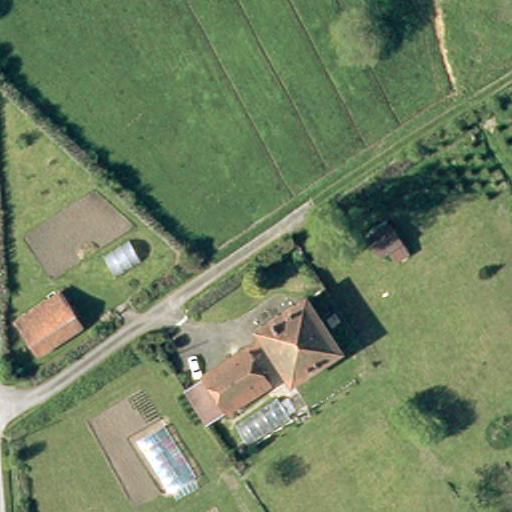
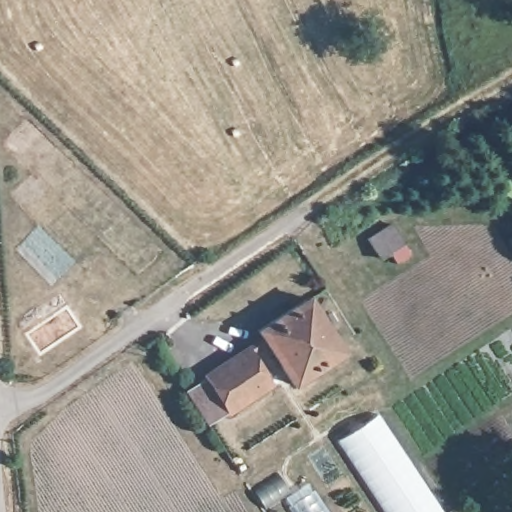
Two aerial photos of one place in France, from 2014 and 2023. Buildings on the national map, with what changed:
unchanged [(88,321),(44,352),(27,325),(71,296),(88,321)]
unchanged [(312,302),(347,356),(297,386),(265,332),(312,302)]
unchanged [(210,376),(208,373),(250,346),(273,383),(230,411),(214,421),(192,386),(210,376)]
new [(443,512),(384,512),(336,440),(377,412),(443,512)]

